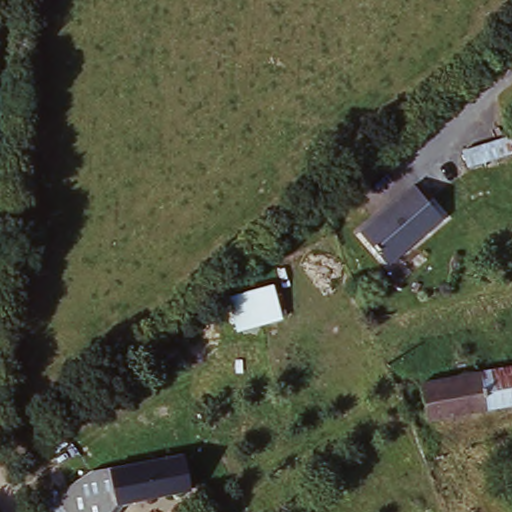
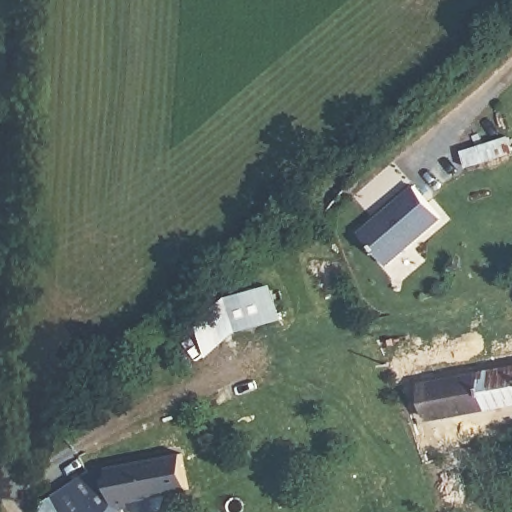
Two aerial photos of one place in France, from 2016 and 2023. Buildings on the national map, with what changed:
unchanged [(512,152),(512,155),(469,169),(464,155),(508,142),(512,152)]
unchanged [(443,220),(384,268),(361,235),(415,187),(443,220)]
unchanged [(259,295),(262,299),(272,296),(277,322),(236,333),(230,303),(259,295)]
unchanged [(512,398),(422,415),(417,380),(512,363),(512,398)]
unchanged [(33,508),(88,470),(182,453),(188,490),(116,507),(112,512),(36,512),(33,508)]

